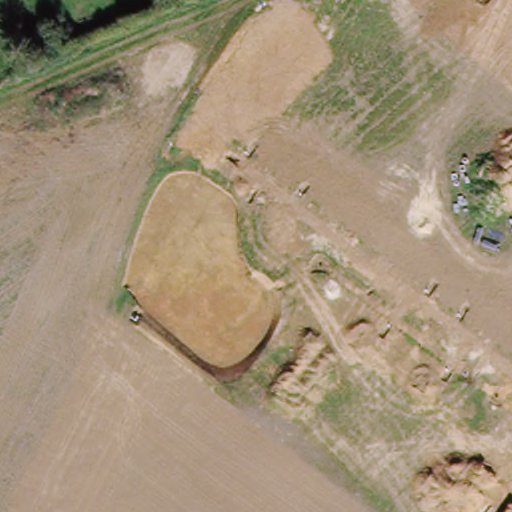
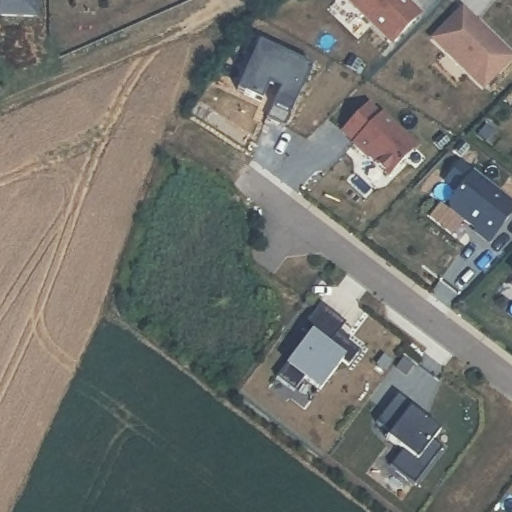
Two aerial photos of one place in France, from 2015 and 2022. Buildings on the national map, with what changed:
new [(407,0),(422,15),(391,46),(350,4),(353,0),(407,0)]
new [(465,10),(512,55),(512,61),(485,89),(435,40),(465,10)]
new [(276,51),(288,57),(310,66),(282,127),(264,119),(275,90),(263,84),(255,101),(233,91),(255,43),(276,51)]
new [(369,105),(381,116),(382,114),(416,148),(388,177),(369,158),(368,159),(352,145),(353,144),(342,133),(369,105)]
new [(475,175),(512,204),(512,218),(485,253),(467,239),(475,229),(453,212),(452,205),(475,175)]
new [(350,328),(343,335),(351,342),(350,344),(360,350),(348,365),(344,359),(317,393),(312,389),(303,406),(290,396),(293,390),(276,377),(285,364),(306,335),(298,330),(319,305),(350,328)]
new [(410,407),(439,432),(415,461),(387,437),(390,433),(376,422),(397,395),(410,407)]

